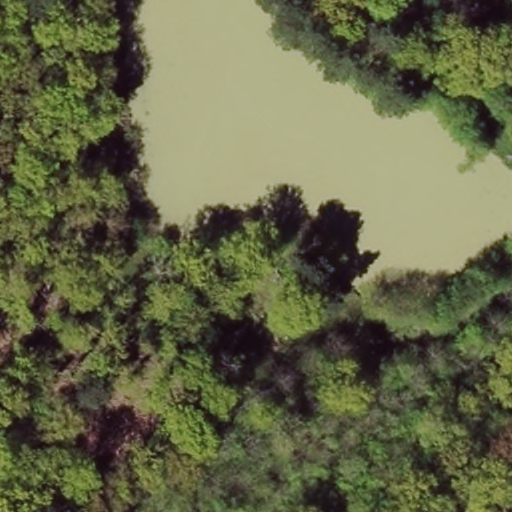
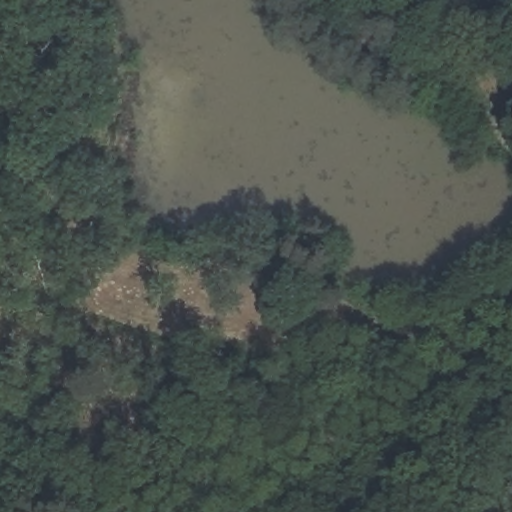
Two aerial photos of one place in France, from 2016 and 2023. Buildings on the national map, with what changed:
unchanged [(280,334),(277,371),(232,367),(237,327),(280,334)]

